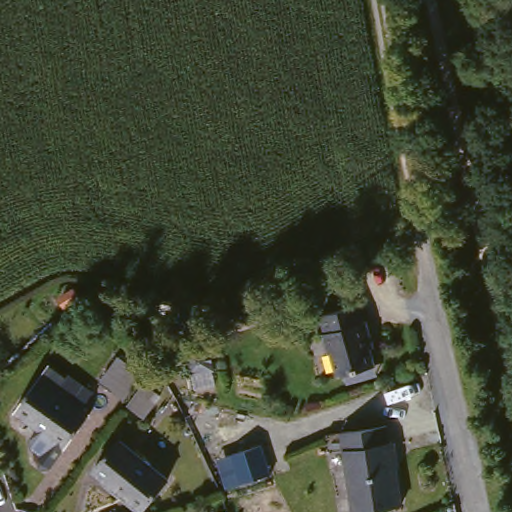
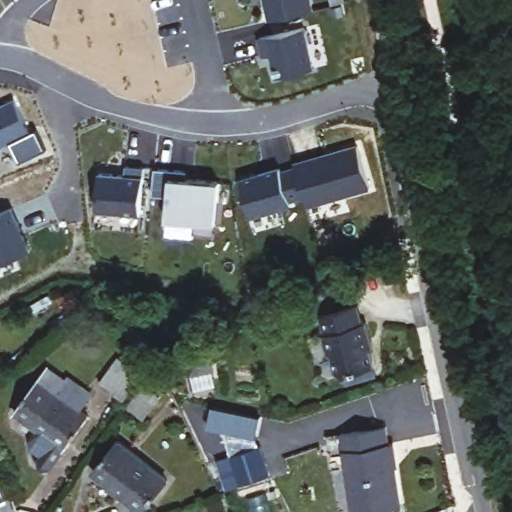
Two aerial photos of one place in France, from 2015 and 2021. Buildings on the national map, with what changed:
new [(309,11),(267,21),(262,0),(306,0),(309,11)]
new [(301,29),(310,68),(275,76),(270,55),(261,57),(257,38),(301,29)]
new [(33,127),(0,143),(0,102),(17,94),(33,127)]
new [(356,147),(368,189),(305,206),(303,197),(294,168),(293,164),(356,147)]
new [(98,172),(123,174),(124,164),(143,166),(139,214),(95,210),(98,172)]
new [(153,168),(186,171),(185,179),(218,182),(214,223),(164,219),(166,196),(151,195),(153,168)]
new [(279,168),(280,172),(294,168),(303,197),(288,201),(289,205),(250,216),(239,179),(279,168)]
new [(32,245),(0,259),(0,208),(13,202),(32,245)]
unchanged [(340,377),(337,367),(336,367),(330,365),(325,345),(321,345),(316,325),(318,324),(314,306),(352,296),(357,313),(360,313),(365,330),(362,331),(369,358),(372,368),(340,377)]
unchanged [(199,349),(206,367),(188,375),(180,357),(199,349)]
unchanged [(70,440),(69,439),(54,460),(47,460),(43,457),(41,450),(44,446),(35,440),(35,430),(41,420),(19,403),(51,358),(70,371),(73,367),(96,384),(84,401),(94,408),(70,440)]
unchanged [(118,359),(141,375),(122,401),(100,385),(118,359)]
unchanged [(159,398),(143,420),(127,408),(143,386),(159,398)]
unchanged [(387,445),(390,445),(400,508),(377,512),(351,512),(340,435),(385,427),(387,445)]
unchanged [(93,472),(118,441),(166,481),(141,512),(93,472)]
unchanged [(226,459),(230,457),(260,448),(269,477),(240,487),(235,488),(226,459)]

